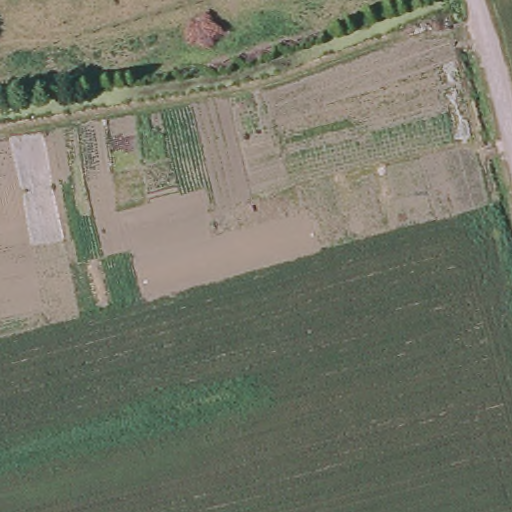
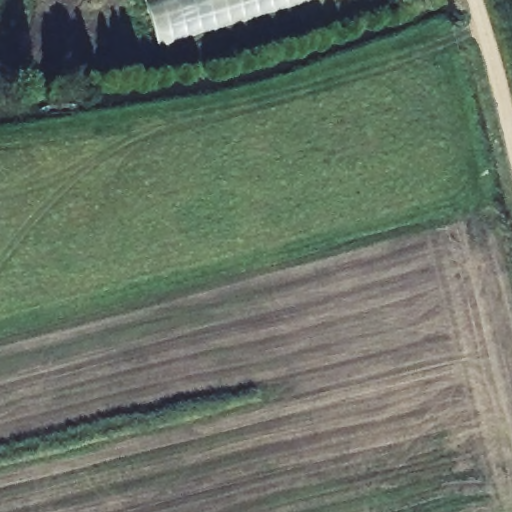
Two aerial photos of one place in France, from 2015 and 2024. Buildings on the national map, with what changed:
new [(156,44),(144,0),(303,0),(156,44)]

